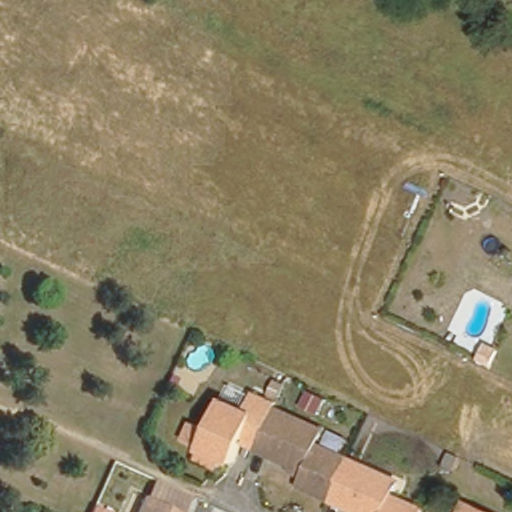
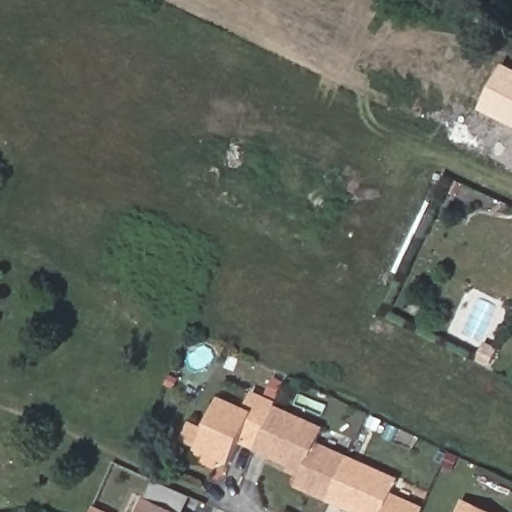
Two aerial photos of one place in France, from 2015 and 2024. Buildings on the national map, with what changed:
new [(503,64),(512,68),(512,126),(480,110),(503,64)]
unchanged [(266,436),(249,428),(235,460),(190,437),(197,422),(212,428),(224,401),(247,410),(256,387),(282,398),(277,411),(266,436)]
unchanged [(338,500),(300,483),(305,471),(260,451),(266,436),(277,411),(325,435),(322,446),(354,461),(338,500)]
unchanged [(400,482),(397,494),(425,508),(423,512),(364,512),(338,500),(354,461),(400,482)]
unchanged [(95,502),(115,512),(90,512),(95,502)]
unchanged [(142,510),(146,512),(141,512),(142,510)]

